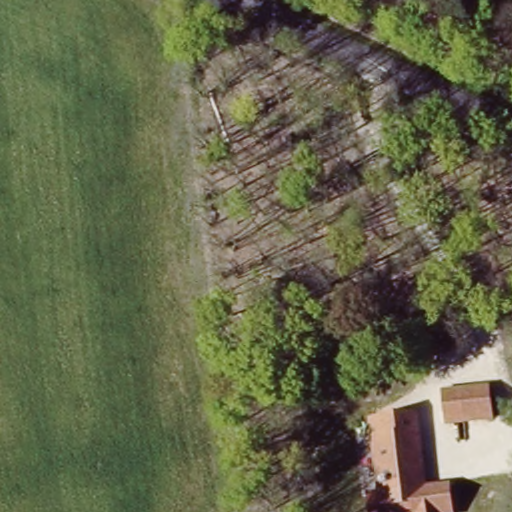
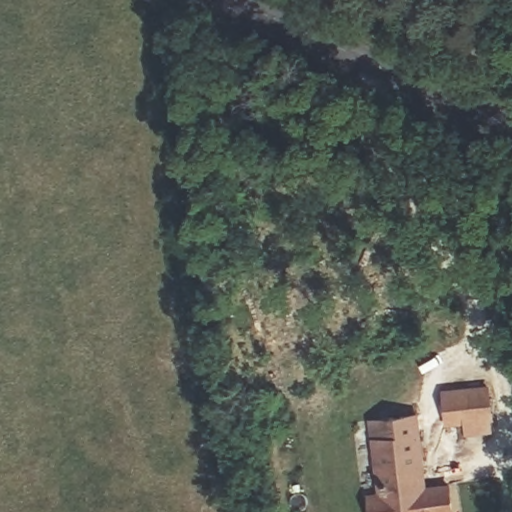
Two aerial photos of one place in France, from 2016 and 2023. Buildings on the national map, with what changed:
unchanged [(444,427),(439,389),(471,386),(490,384),(492,420),(444,427)]
unchanged [(394,492),(377,420),(417,410),(436,485),(462,478),(470,512),(377,512),(374,497),(394,492)]

